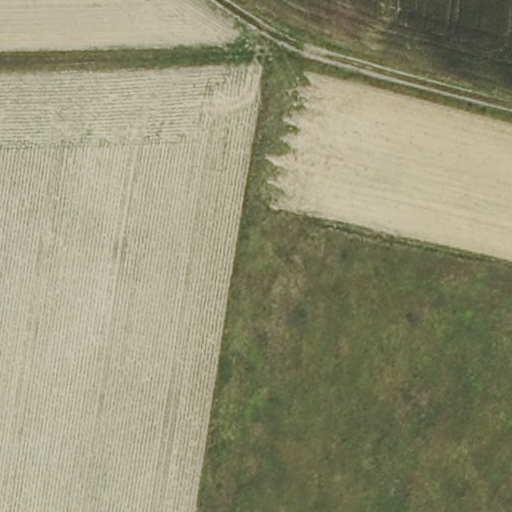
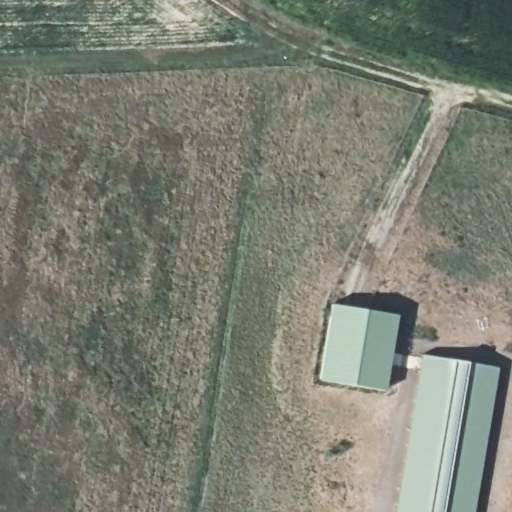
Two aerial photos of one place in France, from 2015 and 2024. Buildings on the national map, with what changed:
new [(398,315),(385,390),(319,380),(331,305),(398,315)]
new [(499,366),(474,512),(395,512),(423,355),(499,366)]

